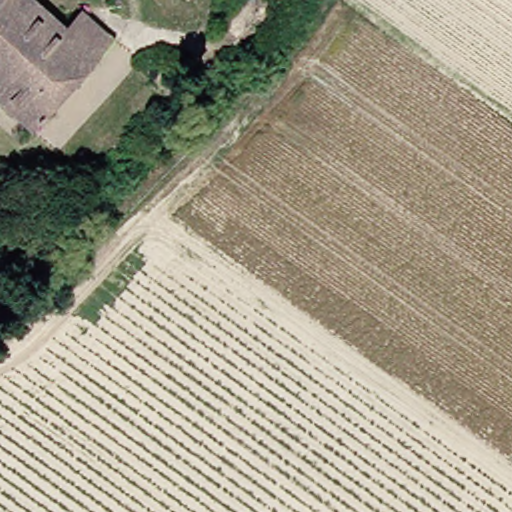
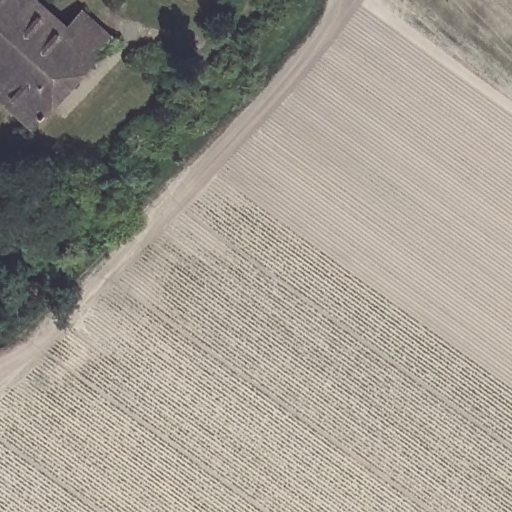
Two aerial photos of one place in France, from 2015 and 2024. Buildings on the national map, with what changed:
unchanged [(0,88),(0,0),(41,0),(70,20),(85,2),(120,27),(82,72),(60,97),(42,119),(0,88)]

